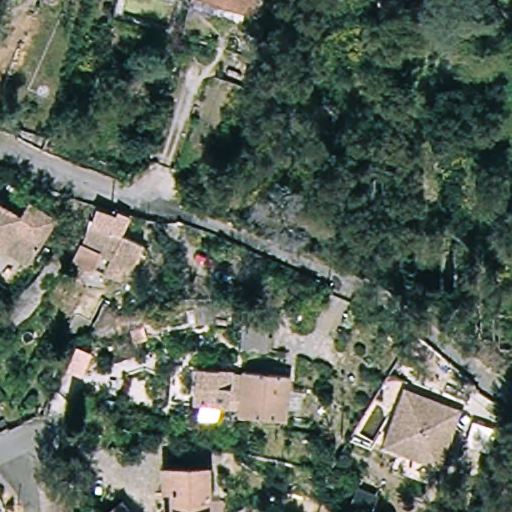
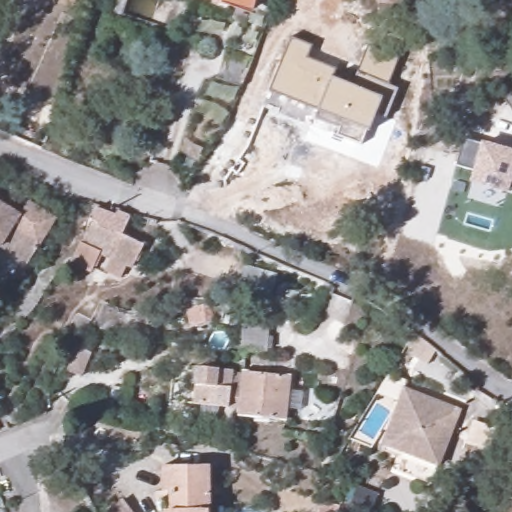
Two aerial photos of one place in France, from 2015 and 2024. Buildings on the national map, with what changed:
unchanged [(250,9),(216,0),(253,0),(250,9)]
new [(313,46),(308,58),(337,69),(335,77),(352,85),(357,72),(399,90),(387,120),(375,115),(369,129),(361,146),(336,136),(262,108),(268,90),(290,37),(313,46)]
new [(481,141),(512,151),(512,184),(508,193),(469,182),(472,172),(455,166),(463,139),(480,146),(481,141)]
unchanged [(0,252),(0,211),(12,218),(20,204),(48,222),(31,250),(22,265),(0,252)]
unchanged [(110,258),(94,250),(85,272),(65,262),(85,217),(90,205),(109,213),(104,226),(138,244),(127,266),(122,264),(114,277),(103,271),(110,258)]
unchanged [(271,298),(240,290),(247,265),(278,273),(271,298)]
unchanged [(195,308),(209,308),(209,321),(195,320),(195,308)]
unchanged [(242,350),(244,324),(272,326),(270,352),(242,350)]
unchanged [(68,375),(76,353),(90,358),(82,380),(68,375)]
unchanged [(238,410),(192,406),(194,369),(229,372),(228,389),(239,390),(240,372),(287,376),(286,391),(301,392),(299,410),(285,409),(284,420),(237,417),(238,410)]
unchanged [(380,449),(402,394),(457,416),(436,471),(380,449)]
unchanged [(151,496),(152,470),(212,470),(212,512),(159,512),(159,496),(151,496)]
unchanged [(129,512),(113,512),(122,504),(129,512)]
unchanged [(512,509),(512,512),(511,509),(512,509)]

